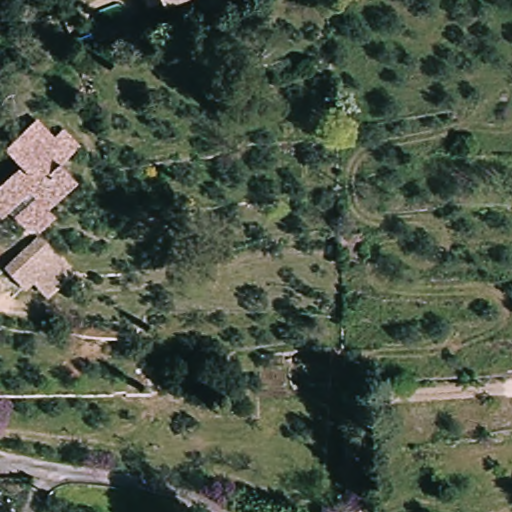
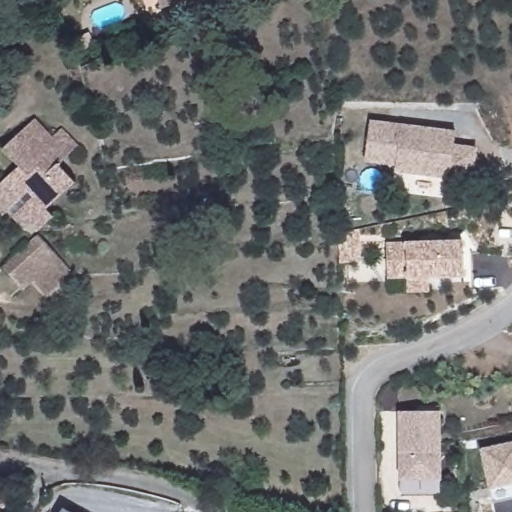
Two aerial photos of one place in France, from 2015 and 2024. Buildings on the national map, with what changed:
unchanged [(181,0),(162,8),(158,0),(181,0)]
unchanged [(32,231),(7,202),(0,208),(0,177),(20,160),(14,152),(10,156),(1,145),(35,117),(51,132),(59,128),(74,147),(57,161),(70,176),(57,187),(54,184),(38,199),(45,207),(51,215),(32,231)]
new [(372,119),(457,130),(456,143),(478,146),(474,182),(451,180),(395,173),(396,166),(367,162),(372,119)]
new [(357,232),(359,262),(339,263),(338,237),(357,232)]
unchanged [(36,296),(22,280),(13,287),(0,270),(0,264),(31,239),(60,277),(36,296)]
new [(390,243),(408,242),(465,240),(465,277),(430,278),(430,292),(408,292),(408,278),(389,278),(390,243)]
new [(427,410),(427,405),(442,405),(442,451),(423,451),(423,477),(403,478),(402,411),(427,410)]
new [(512,442),(512,483),(491,487),(482,448),(512,442)]
new [(423,477),(423,451),(442,451),(444,492),(404,493),(403,478),(423,477)]

